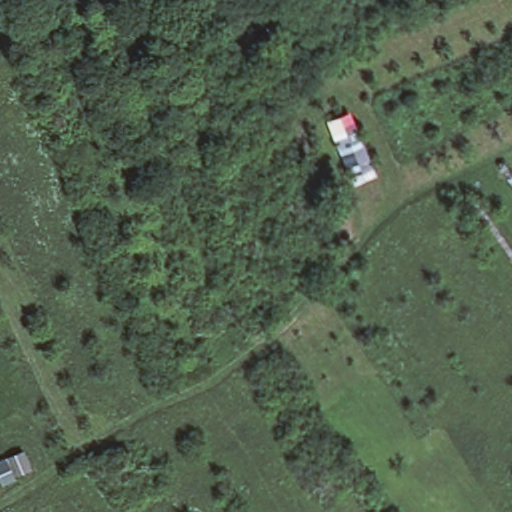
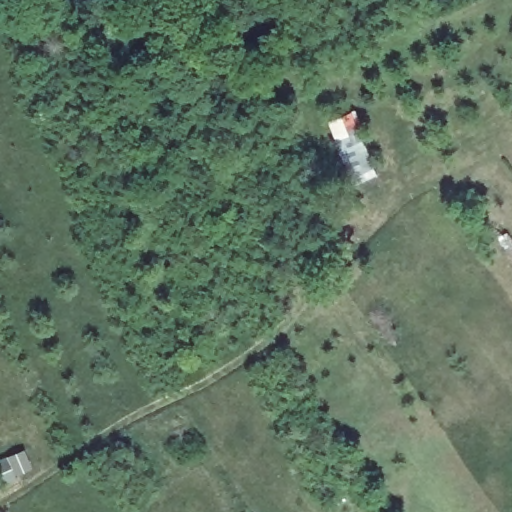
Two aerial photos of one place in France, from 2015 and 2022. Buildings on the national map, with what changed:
unchanged [(0,455),(25,447),(33,465),(9,475),(0,459),(0,455)]

